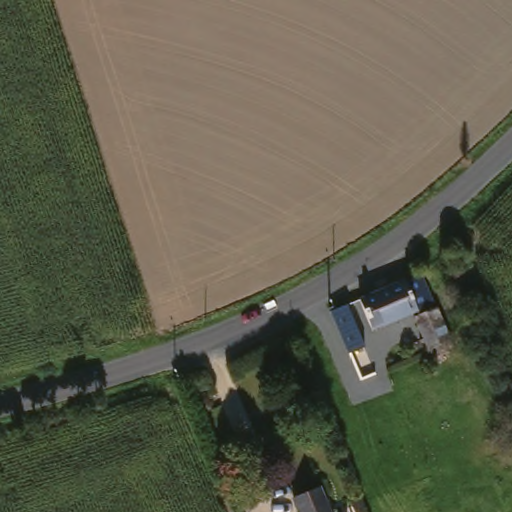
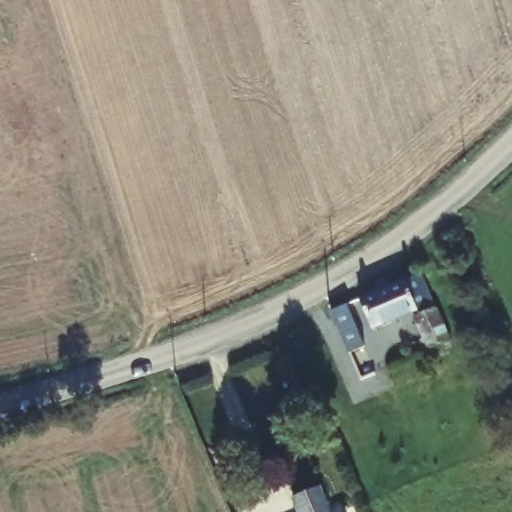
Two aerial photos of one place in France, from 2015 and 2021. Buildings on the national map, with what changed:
unchanged [(428,275),(455,341),(424,355),(421,346),(430,342),(421,320),(428,317),(426,310),(378,328),(366,301),(428,275)]
unchanged [(355,301),(375,343),(361,349),(342,307),(355,301)]
unchanged [(325,485),(336,512),(303,512),(297,497),(325,485)]

